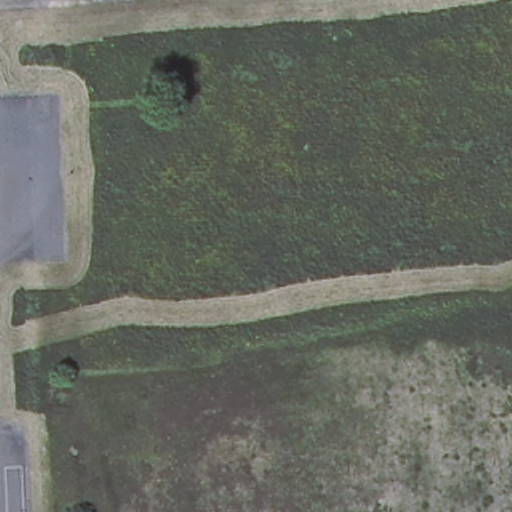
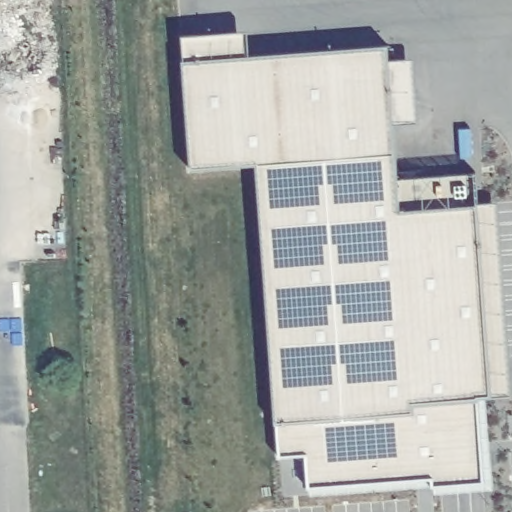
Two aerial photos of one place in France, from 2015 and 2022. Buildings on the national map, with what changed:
new [(245,33),(248,59),(385,51),(385,62),(412,62),(416,124),(390,125),(398,214),(494,207),(512,400),(478,402),(480,483),(432,486),(431,478),(307,486),(306,457),(280,457),(255,165),(190,166),(183,36),(245,33)]

